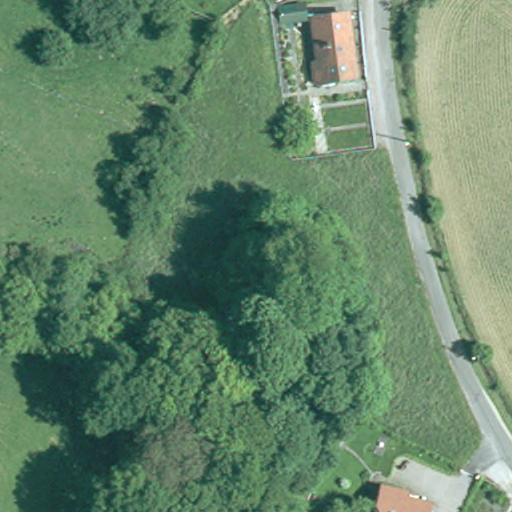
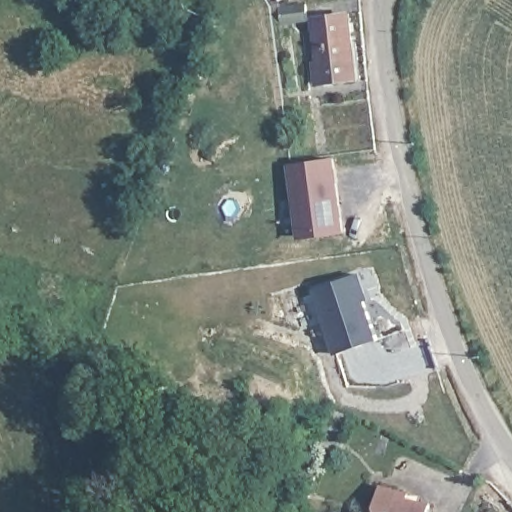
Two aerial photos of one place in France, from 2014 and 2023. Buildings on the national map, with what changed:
unchanged [(288,8),(288,0),(300,0),(301,6),(288,8)]
unchanged [(313,26),(291,29),(290,16),(312,12),(313,26)]
unchanged [(367,84),(325,88),(324,69),(329,69),(323,24),(358,19),(367,84)]
new [(337,157),(346,234),(297,240),(287,164),(337,157)]
new [(361,274),(370,300),(365,301),(379,340),(332,356),(309,292),(361,274)]
unchanged [(311,477),(308,493),(294,491),(296,475),(311,477)]
unchanged [(408,495),(407,497),(430,503),(428,512),(377,512),(382,488),(408,495)]

